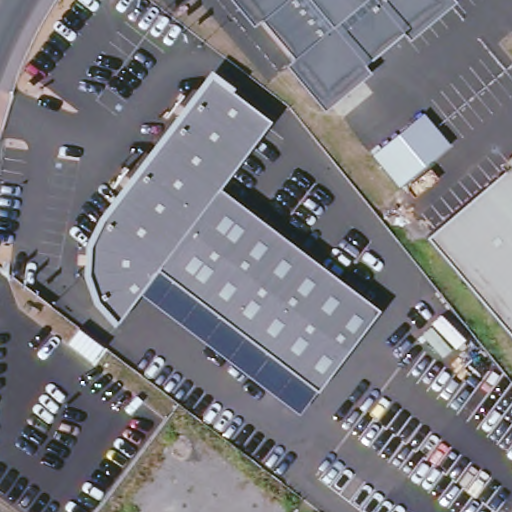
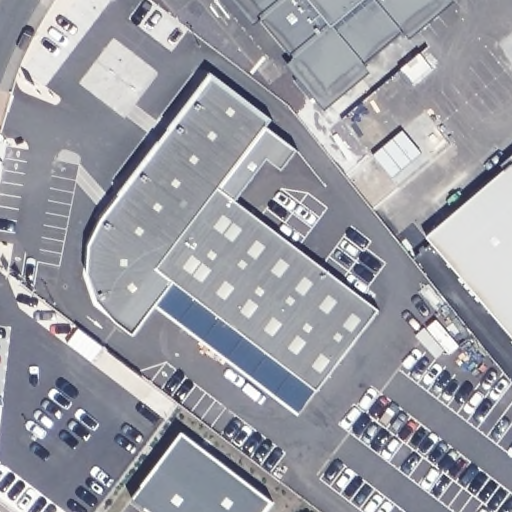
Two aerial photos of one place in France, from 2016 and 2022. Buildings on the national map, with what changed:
unchanged [(445,0),(330,100),(244,0),(445,0)]
unchanged [(266,121),(216,189),(270,228),(277,234),(377,309),(316,391),(291,373),(203,307),(195,301),(155,271),(138,295),(115,325),(91,307),(82,277),(85,249),(101,223),(209,78),(266,121)]
unchanged [(400,190),(373,159),(423,116),(450,147),(400,190)]
unchanged [(427,241),(512,169),(512,339),(427,241)]
unchanged [(275,396),(182,328),(175,322),(138,295),(155,271),(195,301),(203,307),(291,373),(275,396)]
new [(273,502),(266,512),(148,512),(131,500),(182,433),(273,502)]

